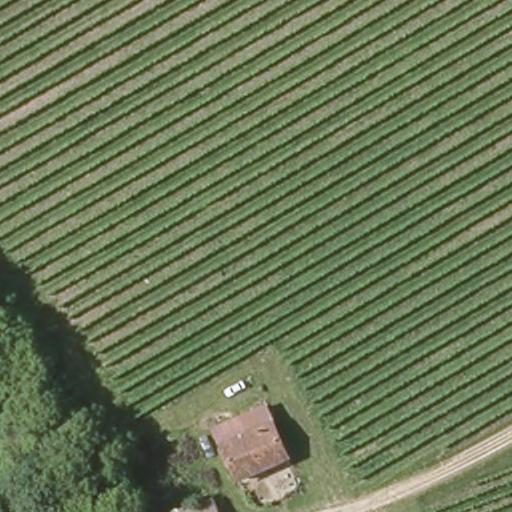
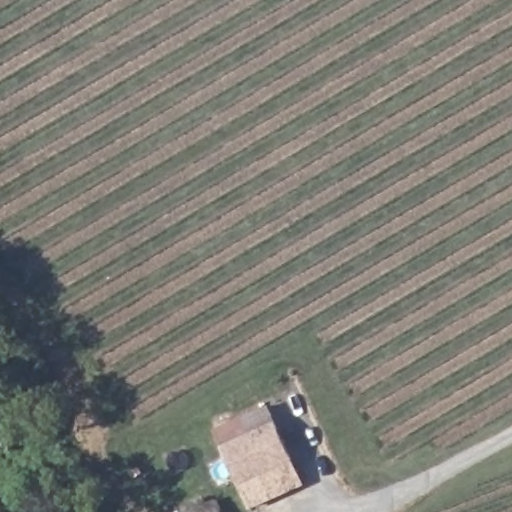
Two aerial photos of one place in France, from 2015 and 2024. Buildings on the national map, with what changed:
unchanged [(290,459),(242,480),(226,446),(274,426),(290,459)]
unchanged [(202,501),(207,505),(215,500),(219,512),(191,512),(189,507),(202,501)]

